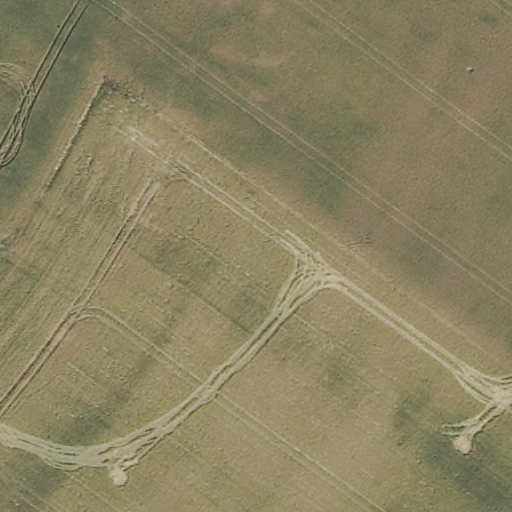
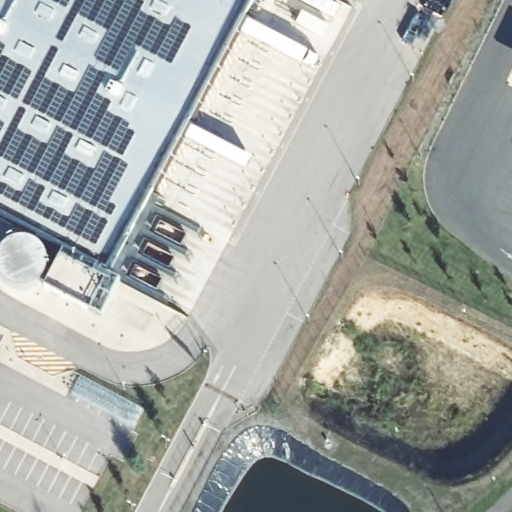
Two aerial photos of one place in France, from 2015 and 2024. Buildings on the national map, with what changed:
new [(84,306),(43,283),(62,245),(0,213),(0,0),(249,0),(84,306)]

